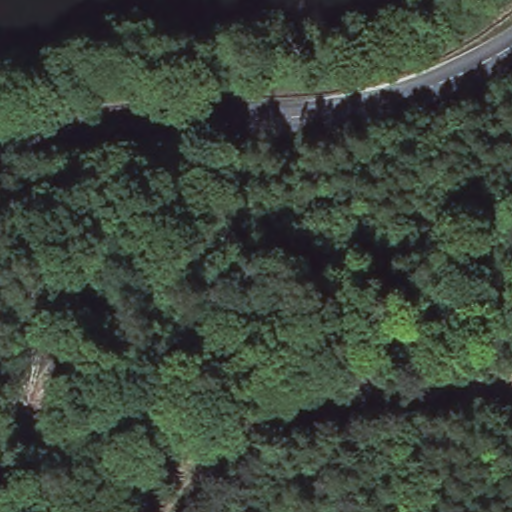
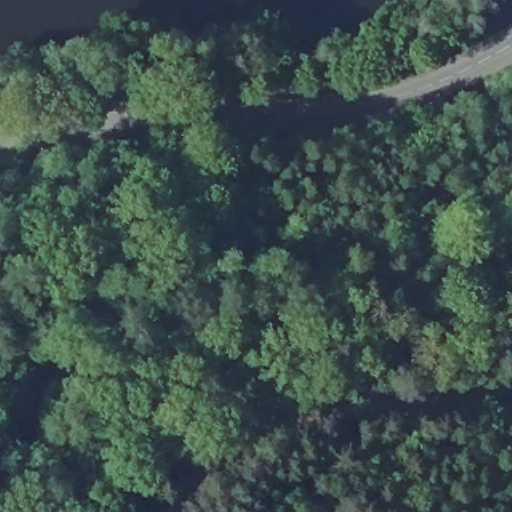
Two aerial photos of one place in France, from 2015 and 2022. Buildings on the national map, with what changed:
unchanged [(91,83),(99,83),(100,89),(92,89),(91,83)]

